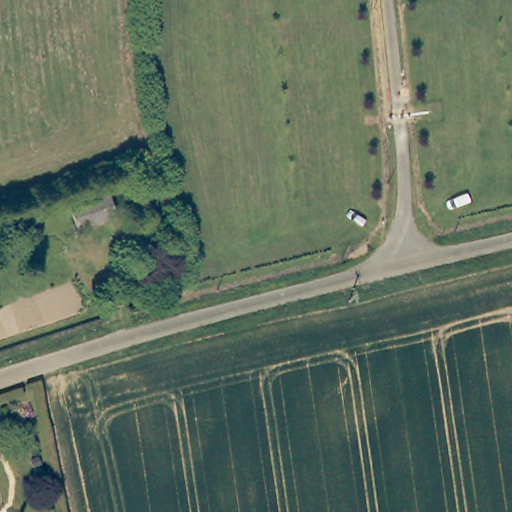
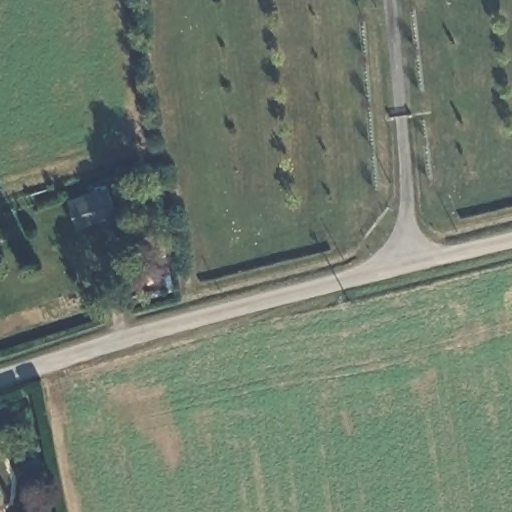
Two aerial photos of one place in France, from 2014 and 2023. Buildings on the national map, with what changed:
unchanged [(135,212),(100,225),(91,197),(129,187),(135,212)]

